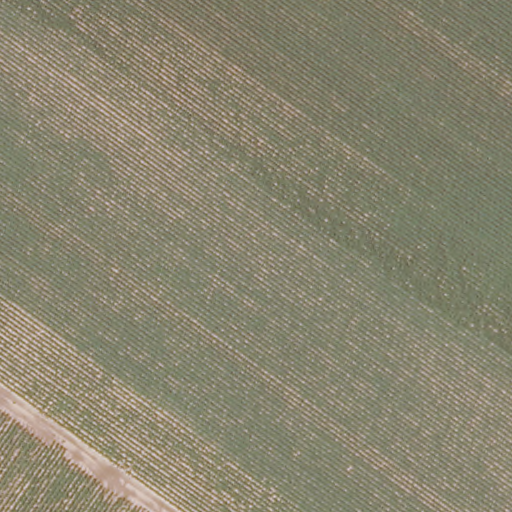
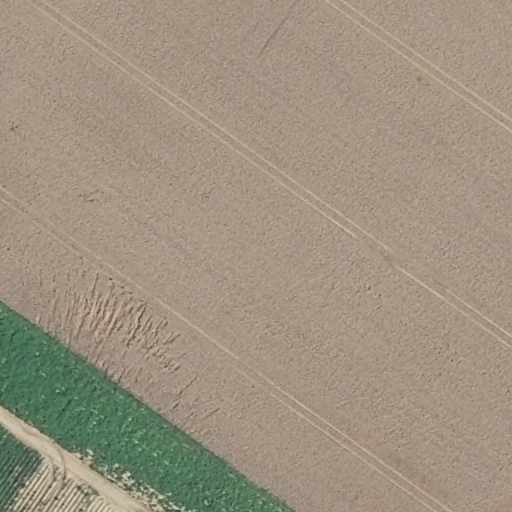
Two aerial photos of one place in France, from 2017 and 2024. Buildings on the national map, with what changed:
[]

